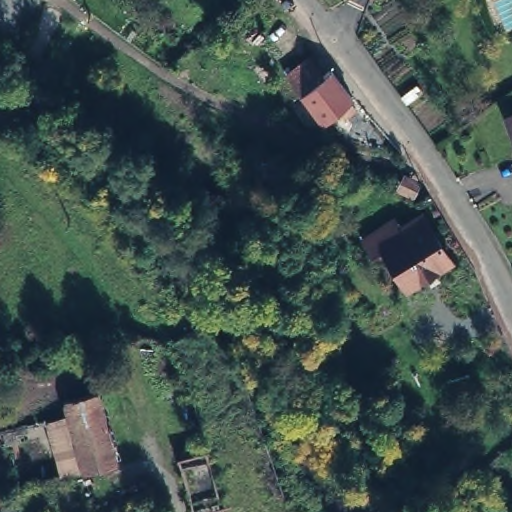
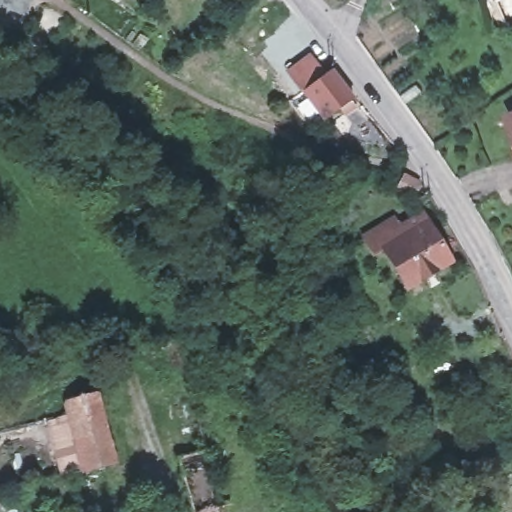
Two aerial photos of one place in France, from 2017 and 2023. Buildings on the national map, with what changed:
unchanged [(324,121),(289,73),(312,56),(324,72),(328,71),(332,71),(354,98),(324,121)]
unchanged [(422,183),(415,196),(400,190),(407,176),(422,183)]
unchanged [(390,246),(379,252),(368,234),(412,206),(417,215),(427,209),(433,218),(390,246)]
unchanged [(457,255),(414,282),(390,246),(433,218),(457,255)]
unchanged [(382,332),(402,319),(441,373),(421,387),(382,332)]
unchanged [(117,463),(83,472),(65,402),(99,393),(117,463)]

